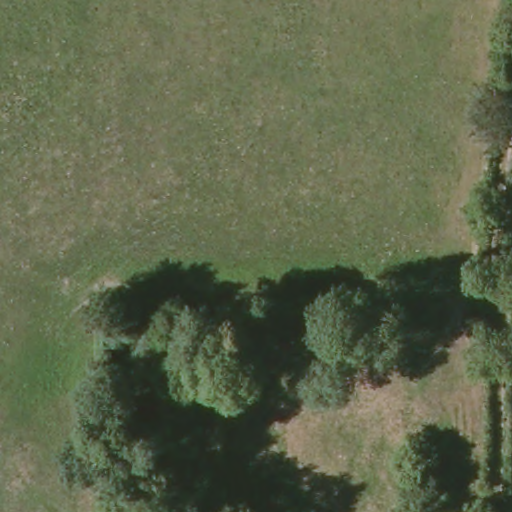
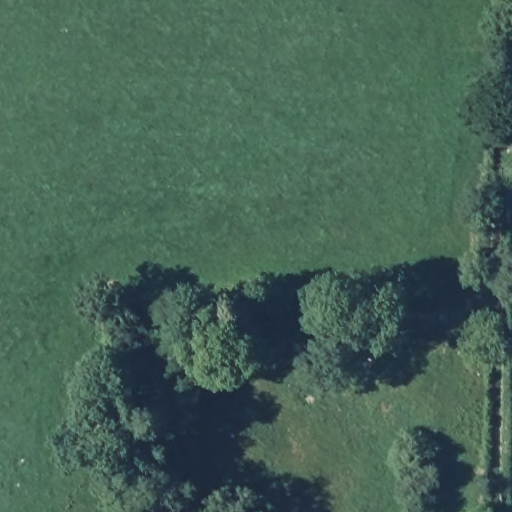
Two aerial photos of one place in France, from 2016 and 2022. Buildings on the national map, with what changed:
[]

